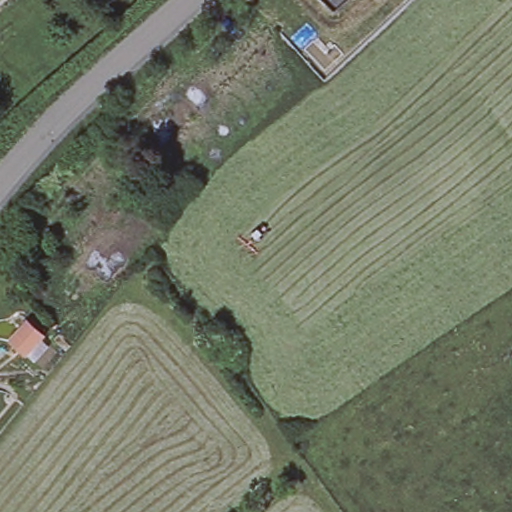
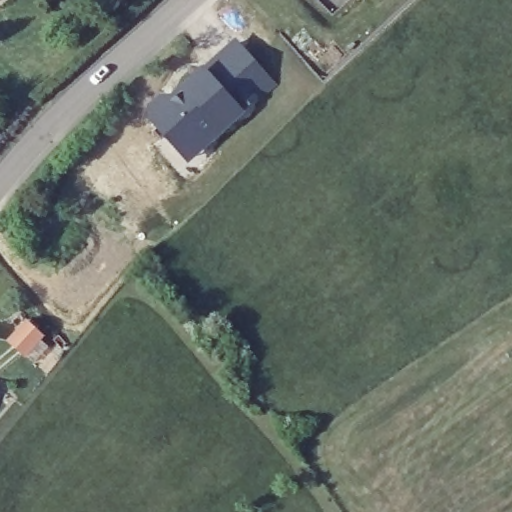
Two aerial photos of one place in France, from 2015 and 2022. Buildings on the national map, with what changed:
new [(273,82),(242,110),(204,145),(200,138),(181,137),(177,142),(175,145),(151,118),(152,106),(162,97),(173,98),(236,43),(273,82)]
new [(190,162),(175,145),(181,137),(200,138),(204,145),(190,162)]
unchanged [(25,353),(10,339),(27,321),(41,334),(25,353)]

